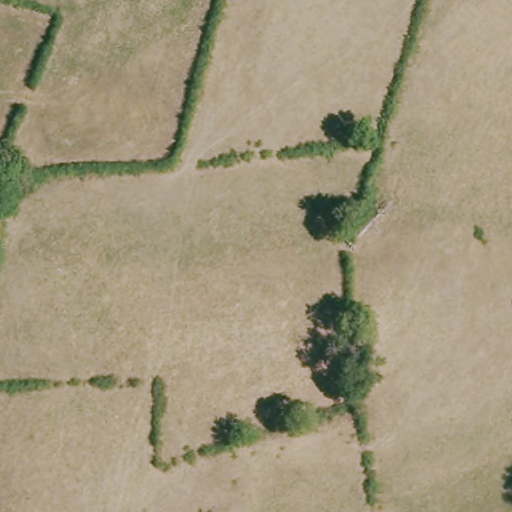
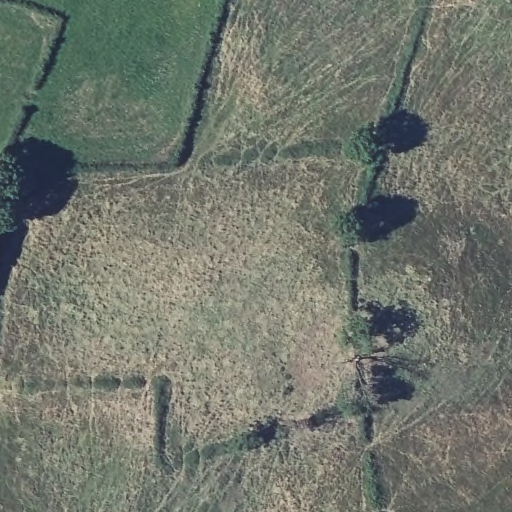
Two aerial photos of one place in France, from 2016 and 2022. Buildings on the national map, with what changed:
unchanged [(13,201),(10,201),(0,236),(0,189),(1,186),(15,190),(13,201)]
unchanged [(7,252),(0,274),(0,250),(7,252)]

